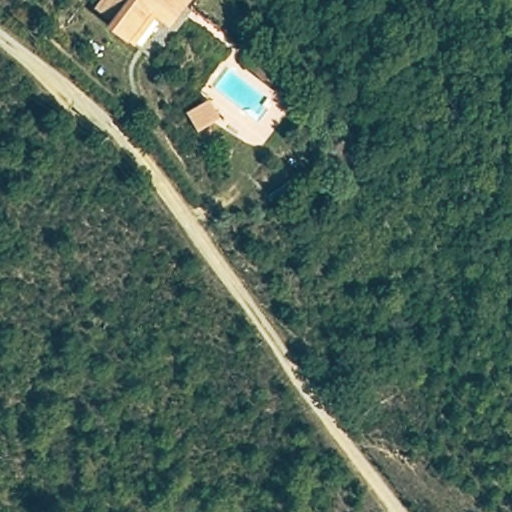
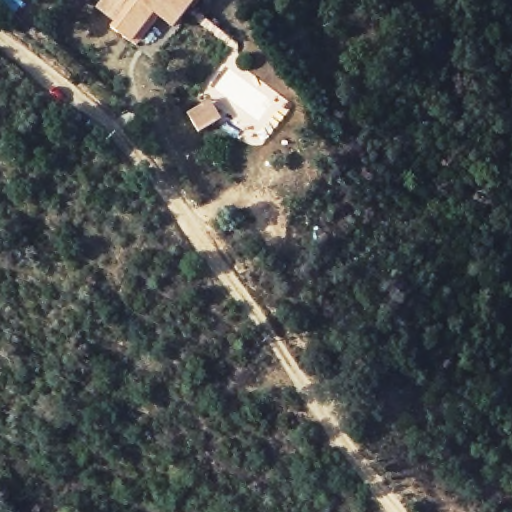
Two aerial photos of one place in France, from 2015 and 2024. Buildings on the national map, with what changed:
unchanged [(103,0),(195,0),(171,33),(152,19),(134,43),(94,12),(103,0)]

